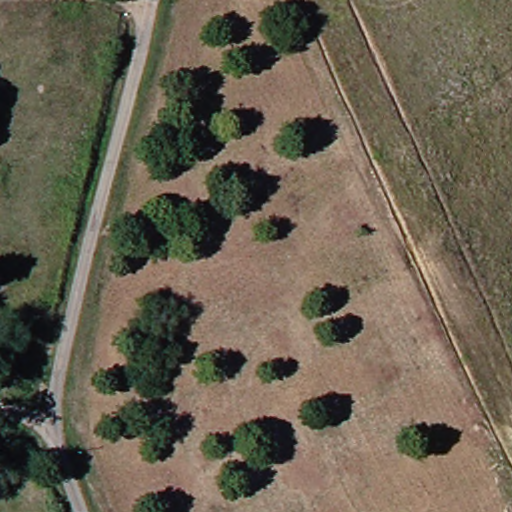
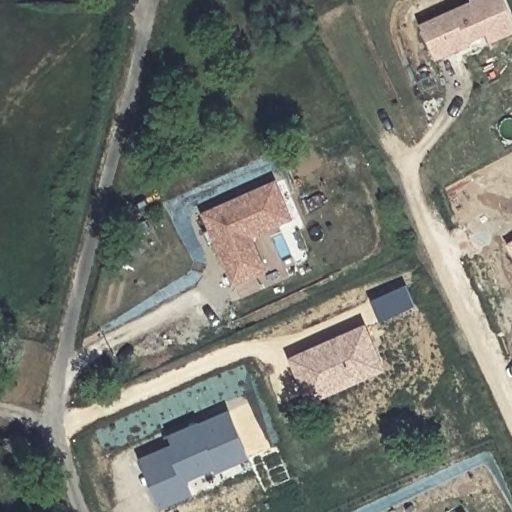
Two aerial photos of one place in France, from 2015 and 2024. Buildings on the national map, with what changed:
new [(471,0),(506,0),(512,12),(512,32),(491,43),(487,34),(469,42),(471,44),(436,61),(420,27),(472,3),(471,0)]
new [(205,213),(274,182),(290,217),(250,235),(265,268),(237,280),(219,242),(205,213)]
new [(219,241),(212,244),(205,230),(213,228),(219,241)]
new [(389,371),(308,406),(288,358),(367,323),(389,371)]
new [(228,412),(249,456),(190,482),(194,490),(159,506),(139,459),(155,452),(157,455),(169,450),(164,441),(228,412)]

